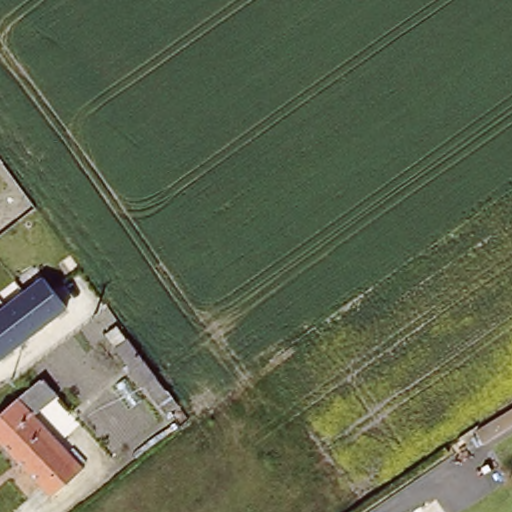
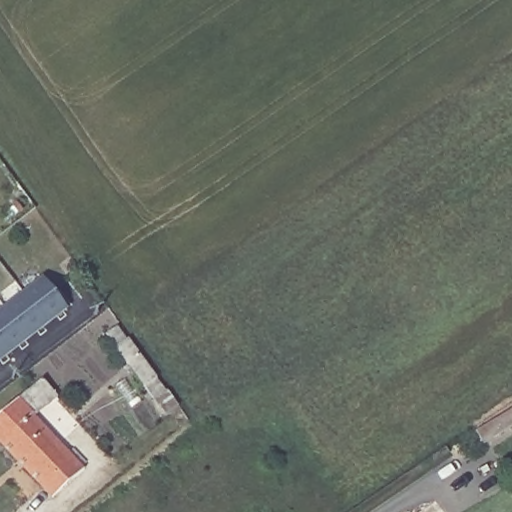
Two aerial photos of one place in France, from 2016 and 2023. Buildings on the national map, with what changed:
unchanged [(43,277),(65,306),(0,356),(0,310),(43,277)]
unchanged [(116,325),(178,404),(164,415),(105,336),(116,325)]
unchanged [(0,442),(0,413),(41,377),(58,392),(34,415),(82,465),(51,496),(0,442)]
unchanged [(474,431),(512,408),(512,426),(482,445),(474,431)]

